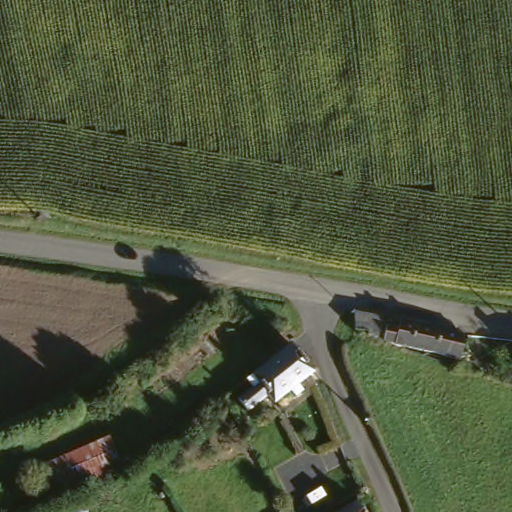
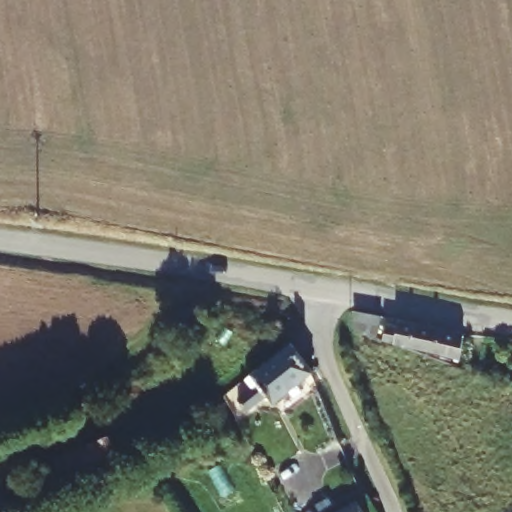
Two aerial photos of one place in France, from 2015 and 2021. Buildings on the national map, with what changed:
unchanged [(365,349),(367,345),(350,342),(348,326),(376,330),(374,351),(365,349)]
unchanged [(384,337),(394,338),(395,332),(459,341),(456,365),(382,354),(384,337)]
unchanged [(304,371),(298,376),(305,387),(265,415),(260,408),(237,423),(227,410),(248,394),(241,384),(282,354),(290,365),(297,362),(304,371)]
unchanged [(41,512),(36,512),(22,478),(107,444),(121,479),(41,512)]
unchanged [(348,512),(362,504),(367,512),(348,512)]

